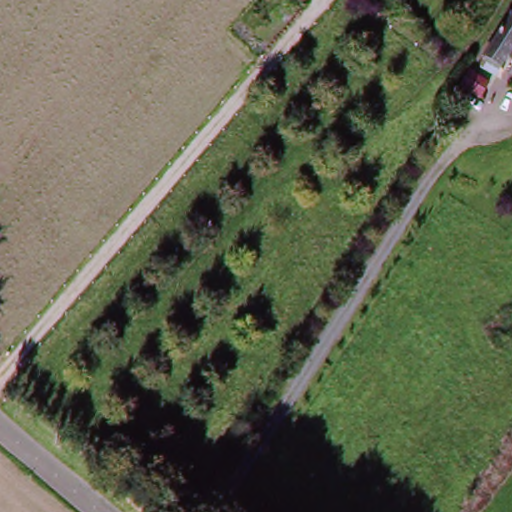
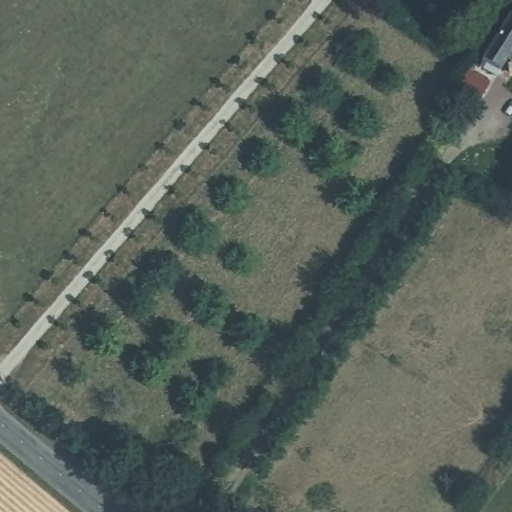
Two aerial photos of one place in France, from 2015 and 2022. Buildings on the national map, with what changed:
unchanged [(485,65),(512,24),(512,57),(500,75),(485,65)]

